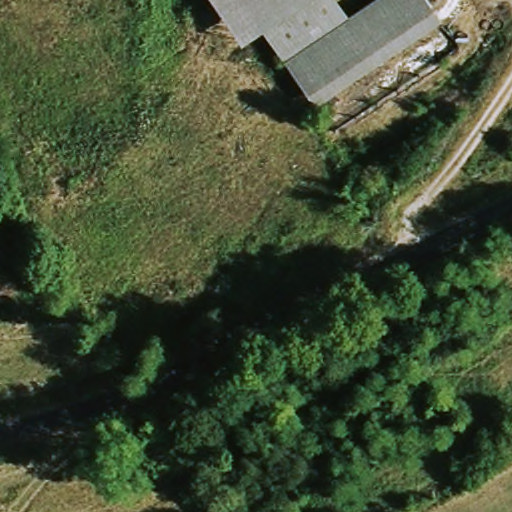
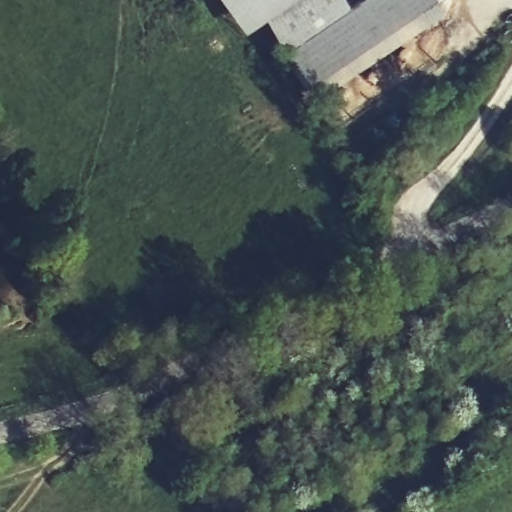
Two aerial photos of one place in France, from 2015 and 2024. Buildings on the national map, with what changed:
unchanged [(237,38),(213,0),(298,0),(258,24),(237,38)]
unchanged [(417,35),(307,104),(258,24),(298,0),(331,0),(343,19),(373,0),(419,0),(434,25),(417,35)]

